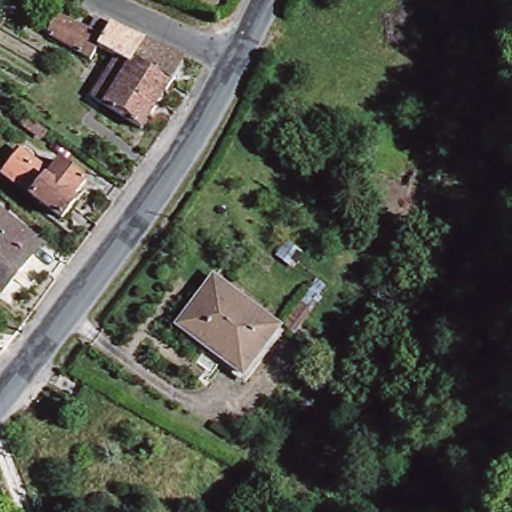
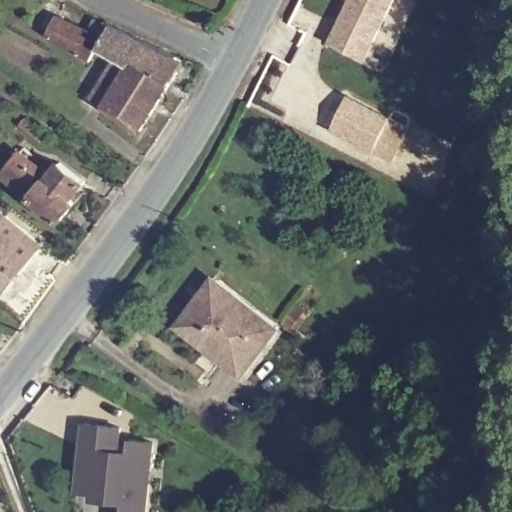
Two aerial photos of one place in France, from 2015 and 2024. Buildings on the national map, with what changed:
new [(394,0),(374,41),(365,59),(329,41),(338,23),(349,0),(394,0)]
unchanged [(95,94),(112,66),(86,52),(49,33),(58,15),(96,34),(103,21),(144,41),(177,56),(163,76),(172,83),(140,129),(95,94)]
new [(350,96),(393,118),(376,152),(333,131),(350,96)]
unchanged [(80,177),(68,192),(71,195),(56,214),(1,169),(18,147),(45,169),(56,156),(80,177)]
unchanged [(41,240),(3,288),(0,286),(0,209),(1,208),(41,240)]
unchanged [(273,321),(238,368),(174,320),(209,273),(273,321)]
new [(84,423),(121,426),(119,449),(130,450),(131,438),(152,439),(146,512),(125,512),(126,498),(95,495),(97,471),(80,471),(84,423)]
new [(80,471),(97,471),(95,495),(126,498),(125,512),(76,512),(80,471)]

